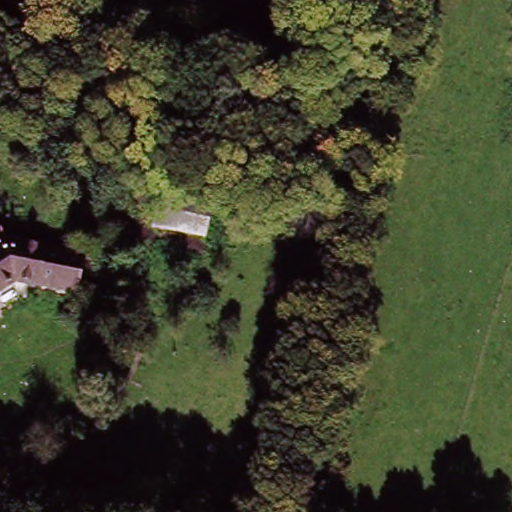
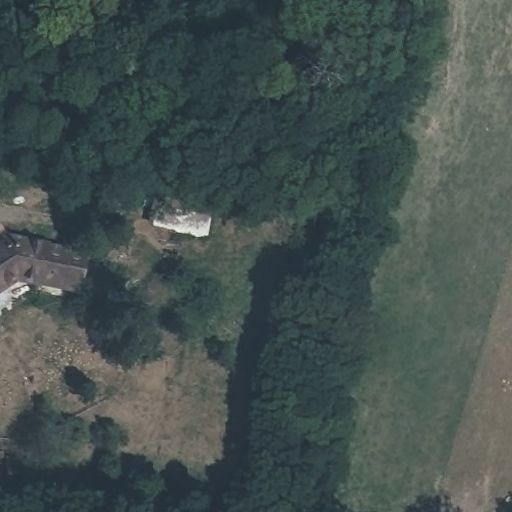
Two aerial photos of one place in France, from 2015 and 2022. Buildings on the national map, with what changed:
unchanged [(11,246),(85,263),(78,298),(19,283),(0,295),(0,253),(11,246)]

